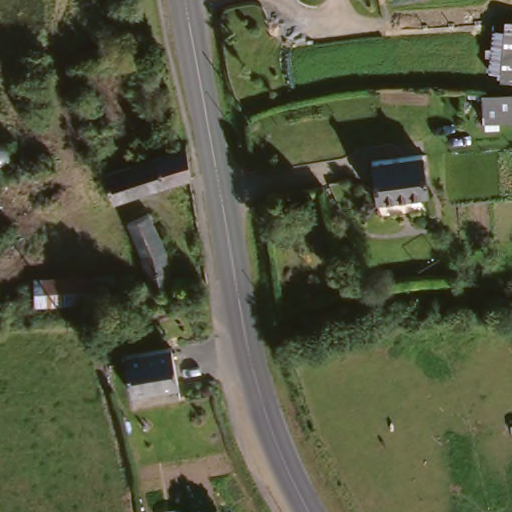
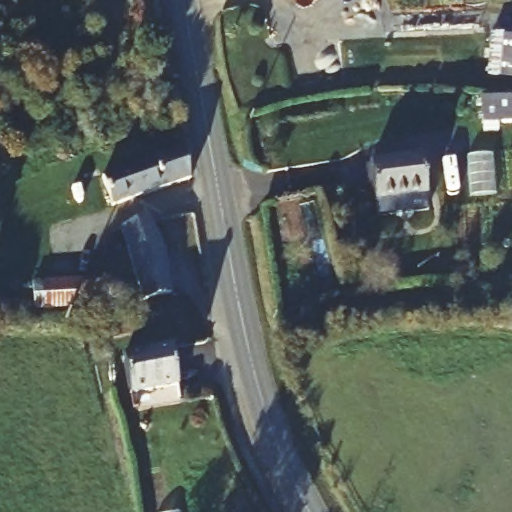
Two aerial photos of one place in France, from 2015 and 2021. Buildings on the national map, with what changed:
unchanged [(506,80),(491,80),(493,35),(506,35),(506,27),(512,27),(512,87),(505,87),(506,80)]
unchanged [(512,124),(476,124),(476,98),(512,98),(512,124)]
unchanged [(183,180),(104,207),(97,176),(176,147),(183,180)]
unchanged [(419,158),(423,199),(371,206),(368,165),(419,158)]
unchanged [(126,289),(139,285),(134,258),(121,226),(141,216),(161,254),(165,292),(141,298),(129,301),(126,289)]
unchanged [(105,279),(107,308),(31,314),(29,283),(105,279)]
unchanged [(175,349),(181,381),(132,393),(125,360),(175,349)]

